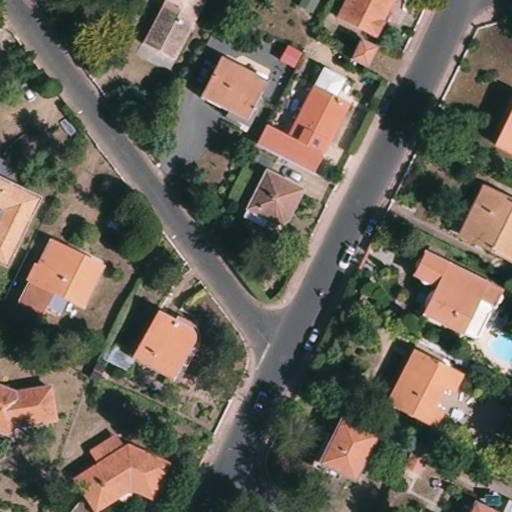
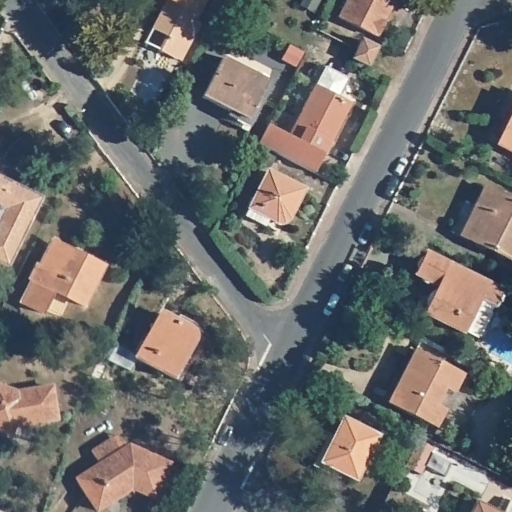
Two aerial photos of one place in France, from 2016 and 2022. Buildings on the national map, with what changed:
unchanged [(164,1),(164,0),(206,0),(175,61),(156,51),(142,45),(150,30),(164,1)]
unchanged [(343,0),(393,0),(384,16),(375,34),(336,13),(343,0)]
unchanged [(358,36),(376,45),(366,64),(349,55),(353,45),(358,36)]
unchanged [(199,100),(220,59),(266,83),(245,123),(199,100)]
unchanged [(286,138),(312,86),(321,68),(343,79),(333,98),(347,105),(322,156),(286,138)]
unchanged [(512,113),(512,155),(495,146),(512,113)]
unchanged [(269,173),(306,192),(292,217),(288,222),(284,224),(281,224),(276,222),(272,219),(267,229),(246,218),(269,173)]
unchanged [(0,264),(0,181),(38,199),(5,267),(0,264)]
unchanged [(485,214),(475,209),(485,188),(512,201),(512,262),(471,242),(485,214)]
unchanged [(54,294),(43,317),(21,306),(32,284),(25,281),(32,266),(37,269),(48,246),(84,263),(86,260),(103,268),(83,308),(54,294)]
unchanged [(461,334),(460,336),(422,318),(436,290),(414,279),(425,257),(448,269),(449,267),(502,294),(496,306),(493,304),(474,340),(461,334)]
unchanged [(131,359),(156,314),(189,332),(192,335),(193,339),(193,343),(172,382),(131,359)]
unchanged [(387,406),(414,352),(462,376),(452,395),(443,390),(434,407),(443,411),(434,429),(387,406)]
unchanged [(16,399),(48,394),(53,424),(18,429),(13,427),(9,436),(0,432),(0,393),(16,399)]
unchanged [(324,465),(345,421),(378,438),(357,482),(324,465)]
unchanged [(175,465),(159,500),(128,487),(109,498),(114,506),(103,512),(100,512),(79,478),(101,466),(93,453),(118,437),(126,450),(132,446),(175,465)]
unchanged [(431,449),(418,476),(403,469),(416,442),(431,449)]
unchanged [(508,500),(512,502),(512,512),(502,512),(508,500)]
unchanged [(475,504),(491,512),(471,512),(475,504)]

